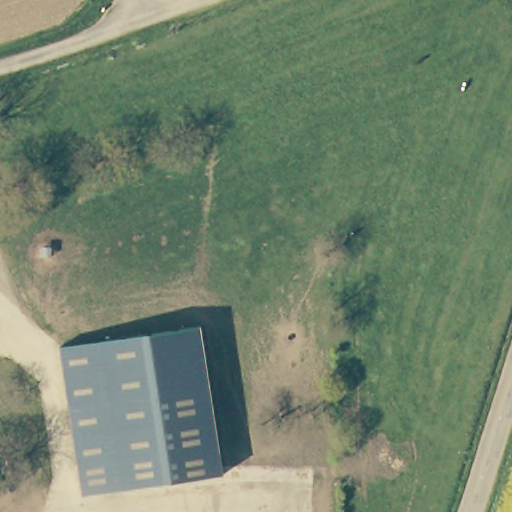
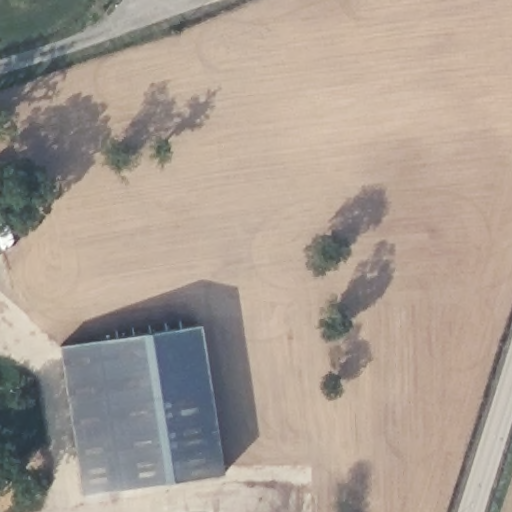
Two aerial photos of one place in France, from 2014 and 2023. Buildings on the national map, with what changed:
unchanged [(209,328),(231,477),(91,498),(69,349),(209,328)]

